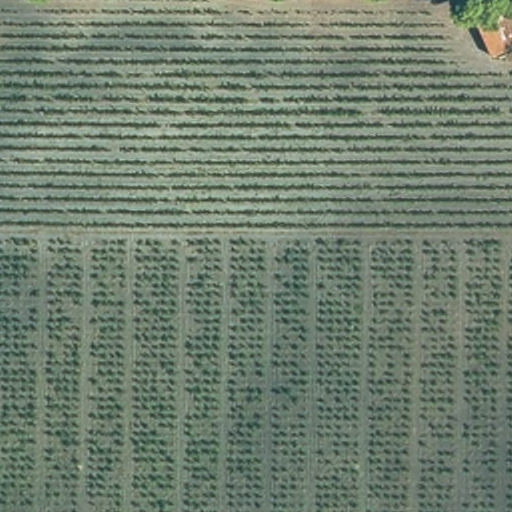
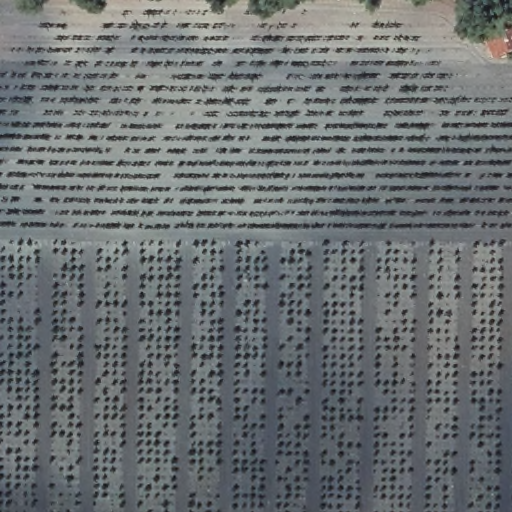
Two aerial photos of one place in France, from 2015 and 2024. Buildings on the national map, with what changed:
unchanged [(498,51),(479,7),(498,0),(512,0),(512,46),(498,51)]

